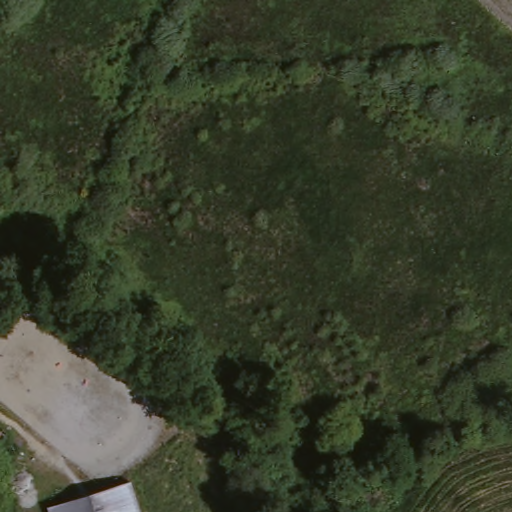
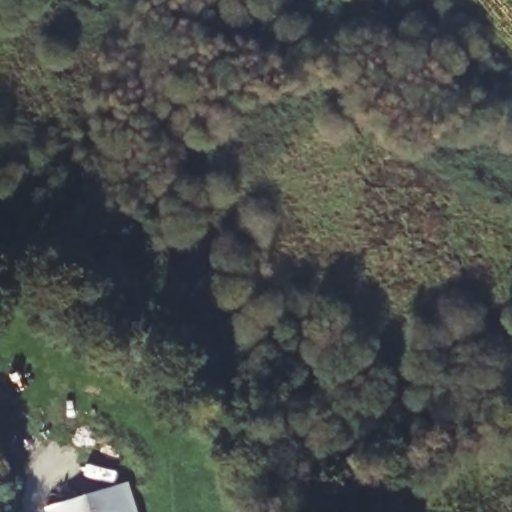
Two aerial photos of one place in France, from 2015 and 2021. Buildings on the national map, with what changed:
unchanged [(130,487),(138,512),(54,512),(130,487)]

